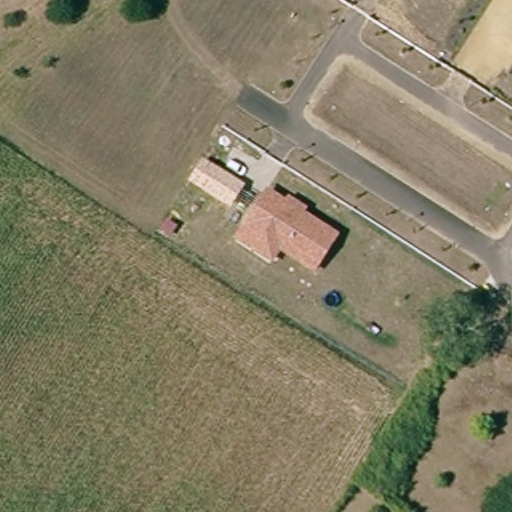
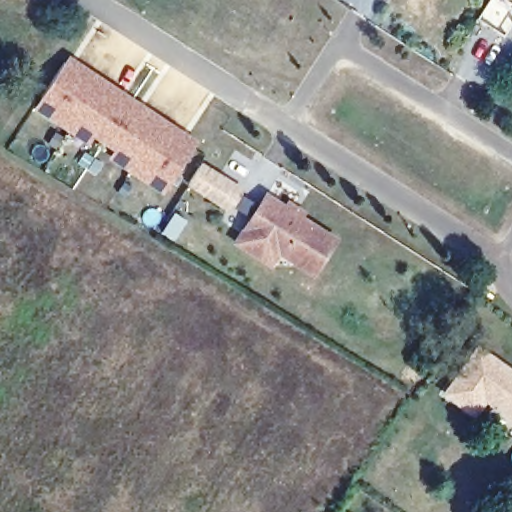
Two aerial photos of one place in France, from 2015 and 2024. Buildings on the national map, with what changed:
new [(145,175),(129,164),(135,156),(74,116),(91,127),(86,135),(69,124),(53,113),(35,101),(41,94),(64,58),(67,54),(85,66),(100,76),(161,116),(176,126),(195,139),(192,143),(169,179),(164,187),(145,175)]
new [(135,156),(129,164),(112,152),(117,144),(135,156)]
unchanged [(202,161),(244,188),(231,209),(188,184),(202,161)]
unchanged [(339,238),(313,276),(279,256),(271,267),(232,241),(265,193),(282,204),(288,198),(309,212),(305,216),(339,238)]
new [(473,418),(442,394),(477,343),(512,368),(512,421),(486,403),(473,418)]

